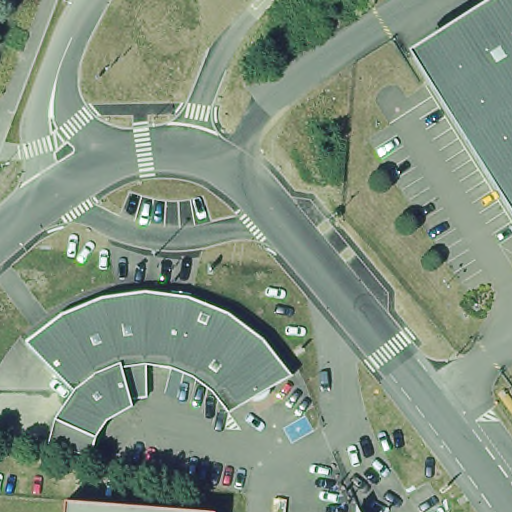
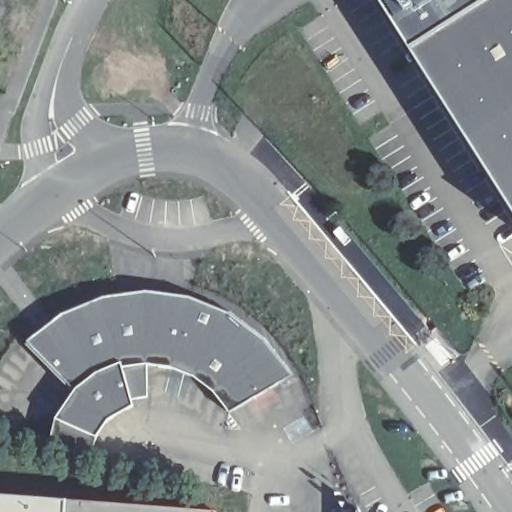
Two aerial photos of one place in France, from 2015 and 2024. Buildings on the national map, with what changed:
new [(415,49),(410,51),(377,0),(492,0),(415,49)]
unchanged [(415,49),(492,0),(512,0),(512,203),(415,49)]
unchanged [(64,391),(16,341),(52,312),(93,295),(136,289),(181,296),(181,297),(169,344),(162,369),(137,365),(137,397),(122,400),(123,406),(98,420),(86,437),(45,419),(64,391)]
unchanged [(169,344),(181,297),(220,312),(255,339),(282,375),(218,413),(203,392),(183,377),(162,369),(169,344)]
new [(65,505),(64,512),(0,512),(0,497),(65,502),(65,505)]
unchanged [(163,512),(64,512),(65,505),(163,512)]
unchanged [(355,512),(353,512),(353,509),(355,512)]

